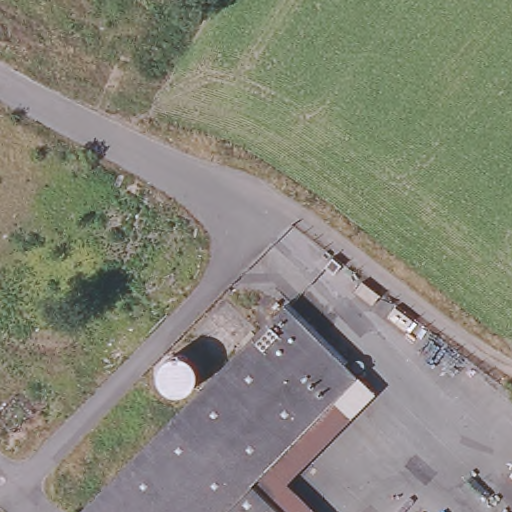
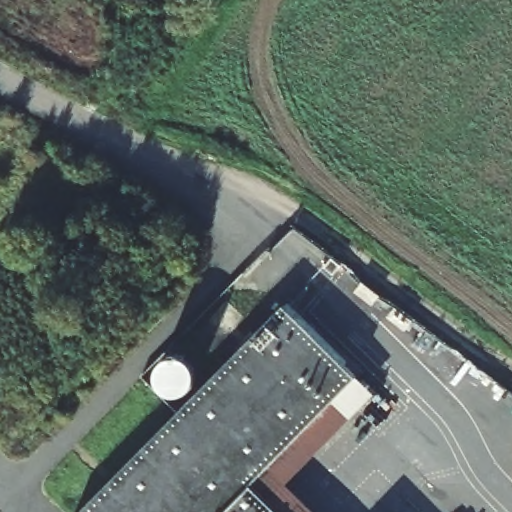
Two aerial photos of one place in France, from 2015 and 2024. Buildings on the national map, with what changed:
unchanged [(318,512),(80,512),(285,305),(374,391),(287,484),(318,512)]

